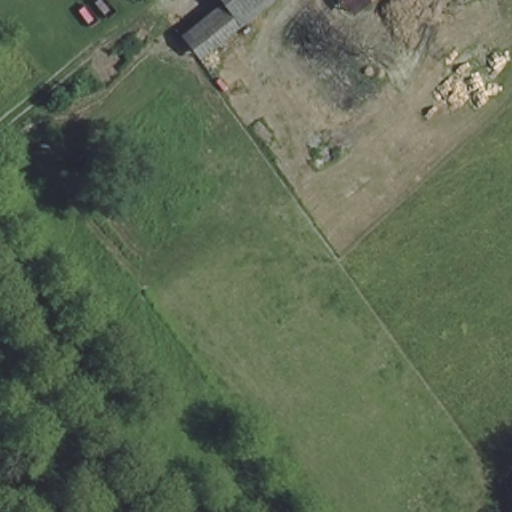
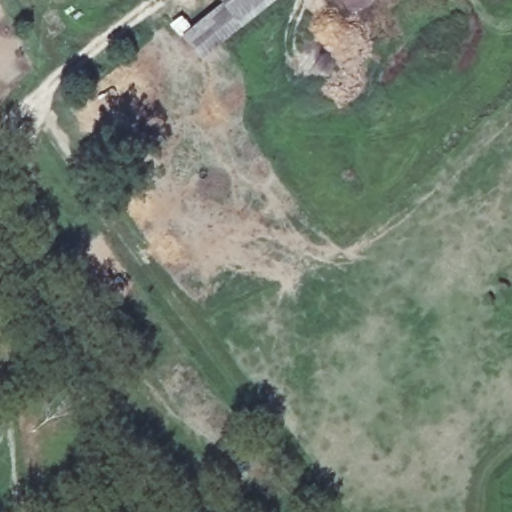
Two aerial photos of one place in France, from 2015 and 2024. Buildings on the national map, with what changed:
unchanged [(224,6),(220,0),(268,0),(239,25),(224,6)]
unchanged [(352,15),(339,0),(369,0),(352,15)]
unchanged [(224,6),(239,25),(200,57),(185,37),(224,6)]

